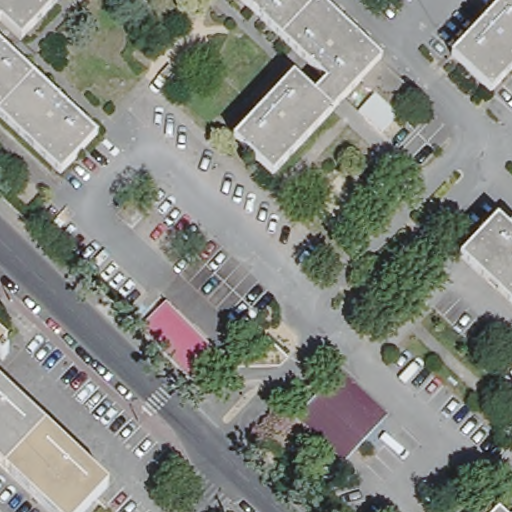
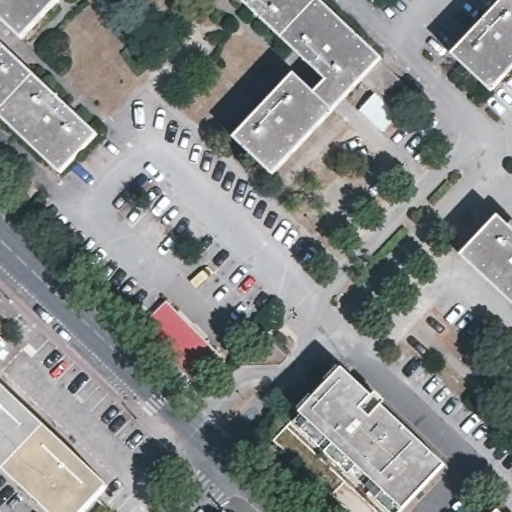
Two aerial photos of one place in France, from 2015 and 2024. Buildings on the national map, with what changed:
unchanged [(21,38),(1,19),(0,21),(0,0),(57,0),(21,38)]
unchanged [(385,62),(382,65),(363,84),(276,178),(236,142),(295,78),(316,97),(329,84),(239,0),(318,0),(385,62)]
unchanged [(494,96),(454,59),(509,0),(512,0),(512,76),(494,96)]
unchanged [(61,171),(0,115),(0,41),(98,133),(61,171)]
unchanged [(421,100),(403,121),(363,84),(382,65),(421,100)]
unchanged [(461,254),(498,214),(512,227),(512,302),(461,254)]
new [(226,361),(200,387),(140,326),(166,300),(226,361)]
unchanged [(9,346),(15,352),(8,359),(1,353),(0,355),(0,331),(12,342),(9,346)]
new [(446,464),(403,509),(298,412),(342,366),(446,464)]
demolished [(388,412),(343,464),(298,419),(343,371),(388,412)]
unchanged [(86,512),(56,512),(0,460),(0,377),(113,482),(86,512)]
unchanged [(496,512),(498,510),(500,512),(496,512)]

